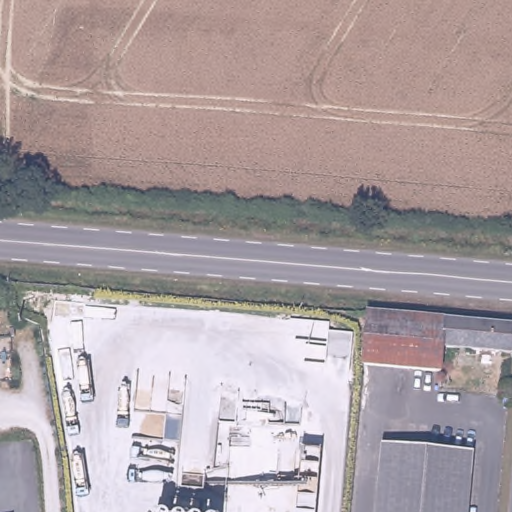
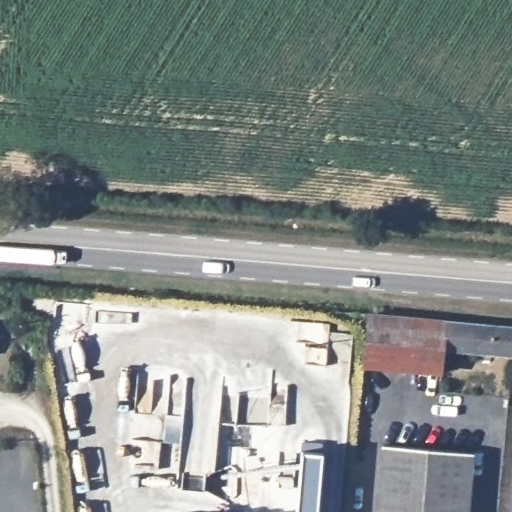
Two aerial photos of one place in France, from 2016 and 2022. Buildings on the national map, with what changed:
unchanged [(15,306),(20,358),(0,358),(0,306),(15,306)]
unchanged [(512,356),(448,350),(445,375),(365,367),(370,317),(365,317),(365,312),(512,325),(512,356)]
unchanged [(475,512),(382,512),(386,443),(480,452),(475,512)]
unchanged [(301,512),(306,452),(327,452),(322,512),(301,512)]

